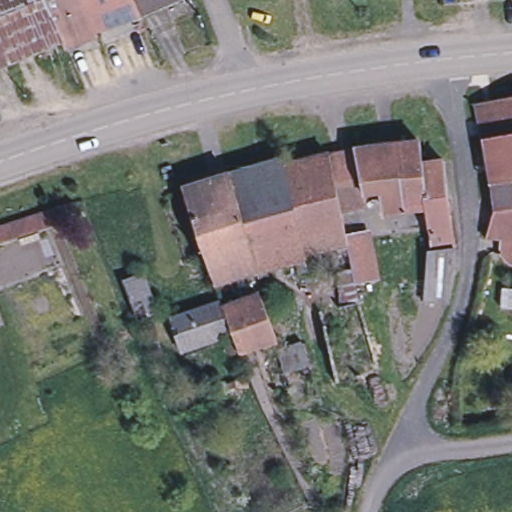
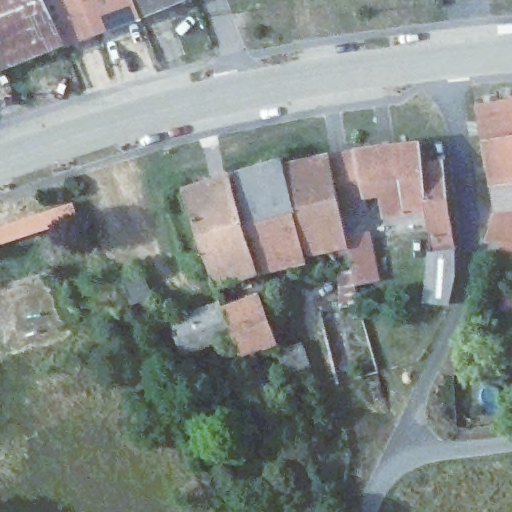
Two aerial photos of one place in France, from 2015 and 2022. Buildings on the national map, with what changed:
unchanged [(40,0),(60,43),(0,67),(0,0),(40,0)]
unchanged [(59,0),(79,37),(60,43),(40,0),(59,0)]
unchanged [(79,37),(59,0),(130,0),(137,17),(79,37)]
unchanged [(130,0),(185,0),(137,17),(130,0)]
unchanged [(478,141),(473,105),(512,99),(512,134),(478,141)]
unchanged [(488,184),(481,142),(478,142),(478,141),(512,134),(512,181),(488,184)]
unchanged [(455,250),(456,267),(454,285),(453,295),(450,302),(437,300),(425,298),(426,260),(423,208),(389,214),(385,192),(367,195),(365,196),(354,152),(422,144),(423,165),(445,162),(455,250)]
unchanged [(354,152),(365,196),(367,195),(369,206),(342,212),(330,157),(354,152)]
unchanged [(342,308),(338,263),(299,273),(296,262),(231,277),(209,183),(284,161),(286,168),(330,157),(342,212),(349,246),(361,303),(342,308)]
unchanged [(498,254),(498,240),(482,240),(489,211),(492,211),(488,184),(512,181),(512,267),(511,267),(498,254)]
unchanged [(209,183),(231,277),(213,282),(203,256),(181,191),(209,183)]
unchanged [(63,206),(66,216),(0,241),(0,226),(63,206)]
unchanged [(142,277),(157,314),(138,322),(122,284),(142,277)]
unchanged [(274,294),(278,305),(268,308),(278,341),(239,356),(223,311),(264,297),(274,294)]
unchanged [(217,303),(229,337),(182,353),(170,321),(217,303)]
unchanged [(281,352),(305,345),(311,367),(287,375),(283,362),(281,352)]

